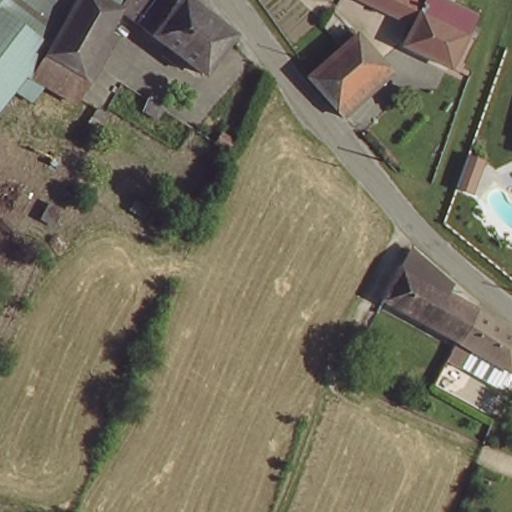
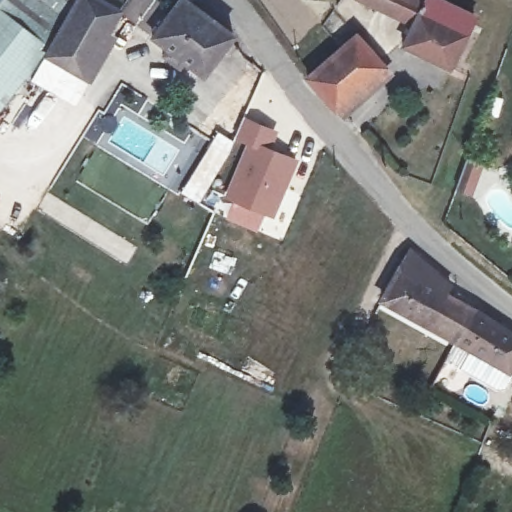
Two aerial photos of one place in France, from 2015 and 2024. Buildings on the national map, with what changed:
unchanged [(29,78),(40,83),(26,99),(12,90),(0,105),(0,0),(72,0),(29,78)]
unchanged [(103,31),(111,35),(73,104),(46,87),(40,83),(29,78),(72,0),(97,0),(115,9),(103,31)]
unchanged [(130,17),(115,9),(97,0),(141,0),(130,17)]
unchanged [(141,0),(153,0),(167,10),(174,0),(188,0),(229,32),(200,71),(130,17),(141,0)]
unchanged [(362,3),(363,0),(418,0),(426,3),(416,25),(362,3)]
unchanged [(426,3),(428,0),(435,0),(472,12),(446,65),(406,46),(416,25),(426,3)]
unchanged [(308,76),(354,35),(386,71),(340,112),(308,76)]
new [(245,142),(235,138),(243,115),(278,130),(267,145),(298,158),(273,219),(223,197),(245,142)]
demolished [(387,158),(405,142),(422,162),(404,178),(387,158)]
unchanged [(454,342),(379,306),(407,253),(447,274),(441,290),(470,307),(454,342)]
unchanged [(470,307),(512,331),(512,355),(507,369),(510,370),(504,386),(445,363),(454,342),(470,307)]

